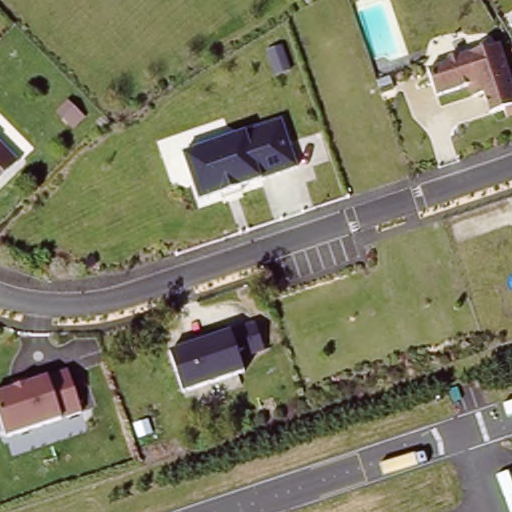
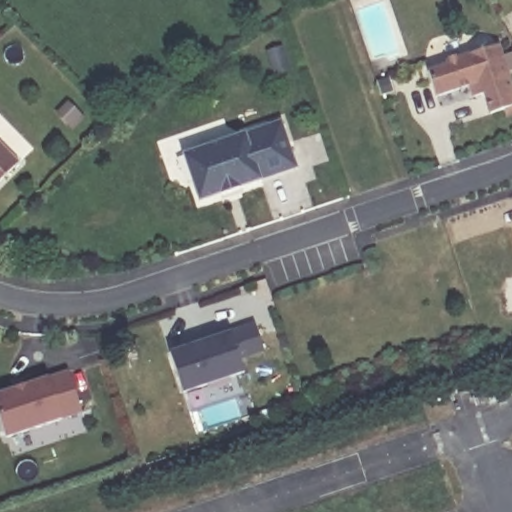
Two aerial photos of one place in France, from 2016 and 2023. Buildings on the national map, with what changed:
unchanged [(512,82),(512,114),(505,116),(501,107),(488,112),(482,91),(470,95),(467,86),(436,96),(427,69),(500,41),(512,82)]
unchanged [(282,119),(297,166),(260,180),(199,200),(182,152),(245,131),(282,119)]
unchanged [(18,161),(0,179),(0,141),(18,161)]
unchanged [(265,352),(242,359),(245,371),(182,391),(168,350),(230,330),(255,322),(265,352)]
unchanged [(81,412),(65,417),(7,437),(0,417),(0,391),(48,376),(68,370),(81,412)]

